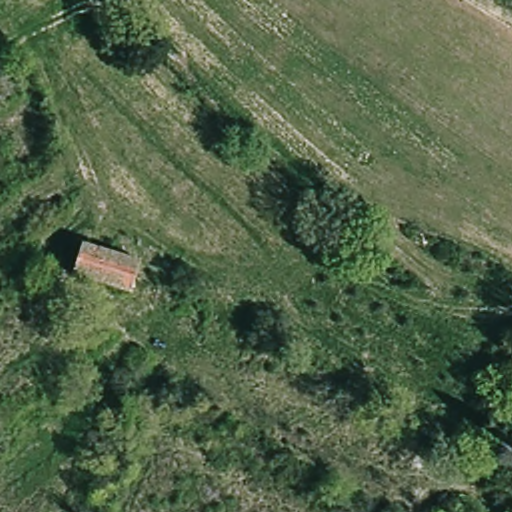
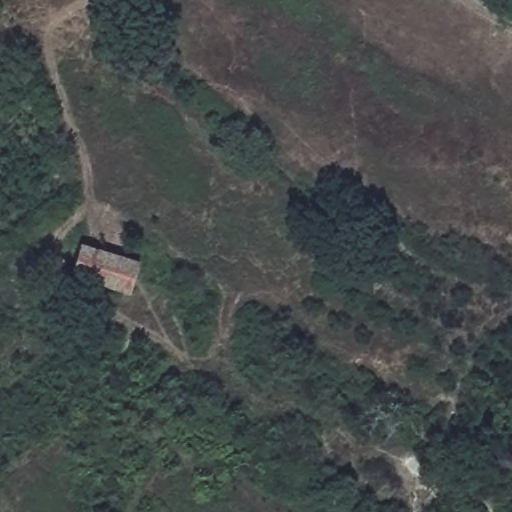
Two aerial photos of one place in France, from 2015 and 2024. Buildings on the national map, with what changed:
unchanged [(139,262),(129,293),(70,275),(80,244),(139,262)]

